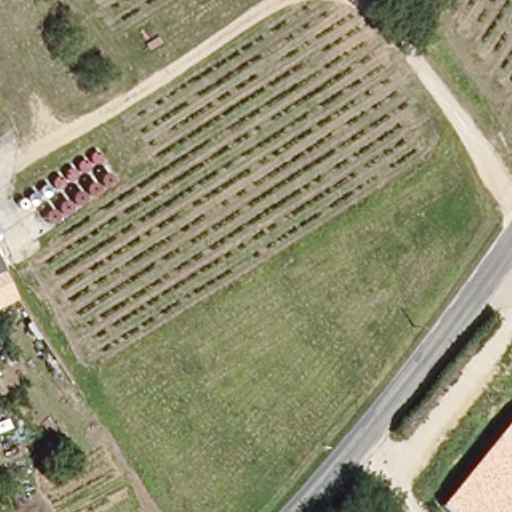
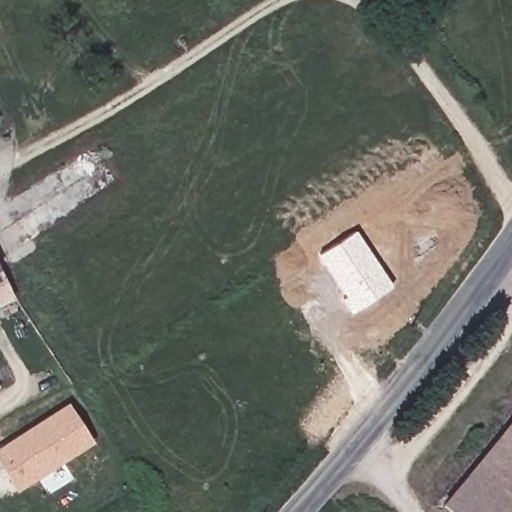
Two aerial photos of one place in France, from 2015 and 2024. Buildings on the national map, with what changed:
new [(350,312),(341,298),(344,296),(319,255),(357,230),(391,285),(350,312)]
unchanged [(14,295),(0,302),(0,267),(14,295)]
new [(0,465),(0,448),(69,403),(94,443),(16,491),(0,465)]
unchanged [(512,416),(512,512),(452,512),(441,502),(512,416)]

